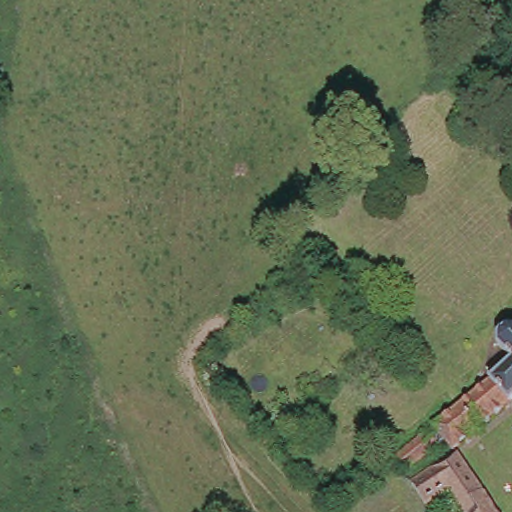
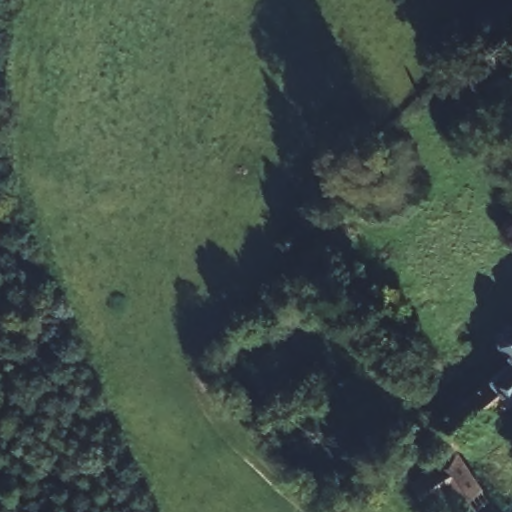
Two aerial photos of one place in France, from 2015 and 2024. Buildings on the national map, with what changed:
unchanged [(497,335),(510,325),(512,325),(512,357),(499,343),(497,335)]
unchanged [(447,418),(500,373),(500,372),(512,362),(512,404),(455,454),(446,445),(402,478),(391,465),(392,463),(445,419),(447,418)]
unchanged [(456,460),(493,512),(425,512),(412,490),(456,460)]

